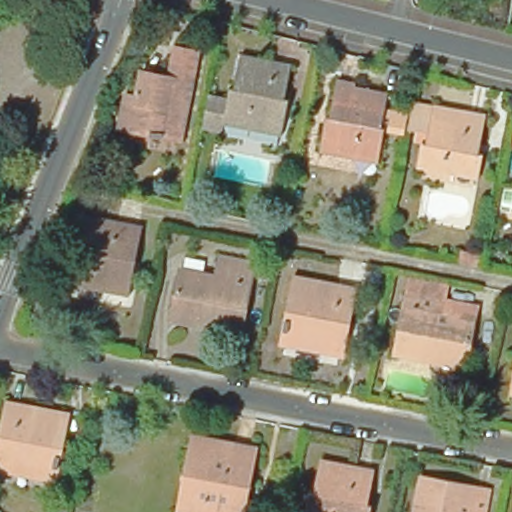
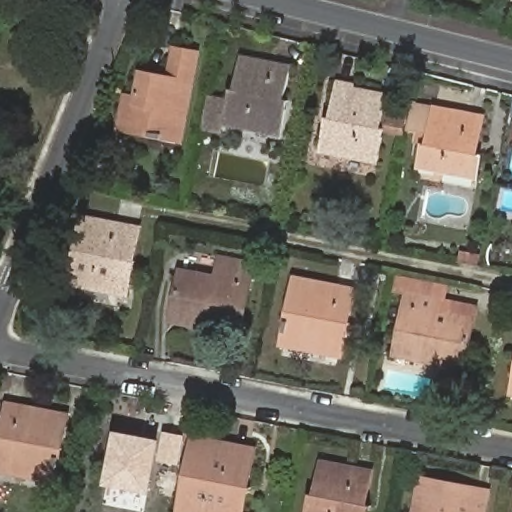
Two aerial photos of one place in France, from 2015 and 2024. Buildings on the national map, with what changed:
unchanged [(138,97),(142,72),(169,77),(174,50),(196,53),(191,81),(181,140),(124,130),(127,109),(129,96),(138,97)]
unchanged [(220,128),(220,132),(198,129),(203,97),(204,94),(225,98),(227,90),(231,91),(236,59),(237,55),(272,61),(286,64),(280,100),(284,100),(278,132),(277,139),(220,128)]
unchanged [(320,156),(321,151),(327,120),(329,120),(337,83),(354,86),(353,92),(386,98),(380,130),(385,130),(379,162),(379,166),(320,156)]
unchanged [(418,166),(419,161),(423,140),(428,140),(430,129),(405,125),(409,101),(434,106),(466,111),(467,108),(482,111),(475,149),(480,150),(476,172),(475,177),(418,166)]
unchanged [(69,283),(70,277),(83,216),(116,222),(117,220),(140,225),(134,260),(132,268),(128,288),(127,294),(69,283)]
unchanged [(170,310),(178,271),(212,279),(214,266),(216,256),(250,263),(248,273),(236,333),(210,327),(168,319),(170,310)]
unchanged [(396,356),(408,295),(412,276),(427,280),(443,283),(449,285),(445,303),(442,317),(451,319),(454,305),(477,310),(463,374),(442,370),(443,366),(423,362),(396,356)]
unchanged [(281,347),(282,343),(285,331),(282,331),(284,320),(287,320),(289,312),(286,312),(293,278),(338,288),(338,285),(355,289),(348,325),(344,325),(338,355),(337,359),(281,347)]
unchanged [(510,395),(511,388),(512,386),(512,395),(510,395)]
unchanged [(0,435),(0,425),(5,398),(22,401),(21,410),(65,418),(59,446),(55,445),(53,454),(58,455),(55,467),(51,466),(49,475),(48,480),(0,470),(0,435)]
new [(113,430),(161,440),(150,493),(103,485),(113,430)]
unchanged [(191,440),(191,435),(256,449),(256,453),(247,490),(245,490),(244,498),(241,512),(177,512),(191,440)]
unchanged [(313,496),(317,497),(324,466),(325,462),(356,469),(373,472),(366,506),(370,507),(370,512),(310,512),(313,496)]
unchanged [(424,484),(476,494),(473,512),(418,512),(424,484)]

